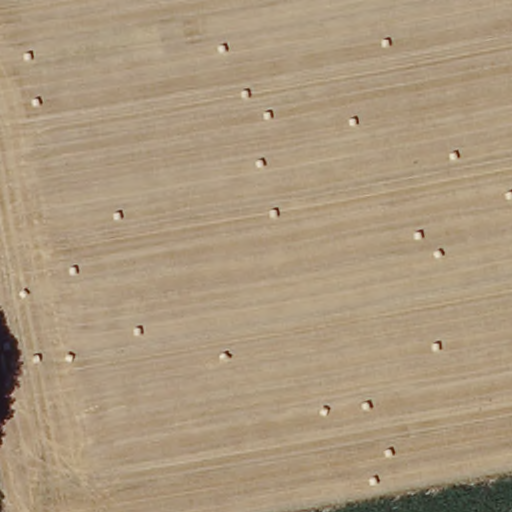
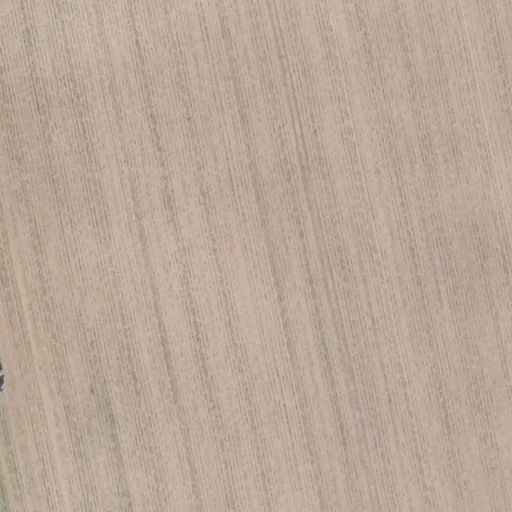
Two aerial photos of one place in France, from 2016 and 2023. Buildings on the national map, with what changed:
[]

